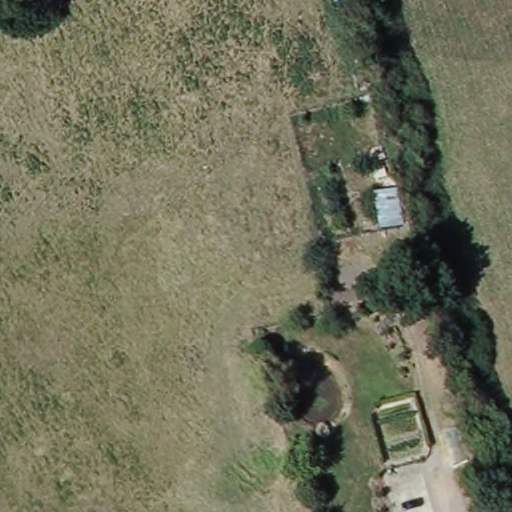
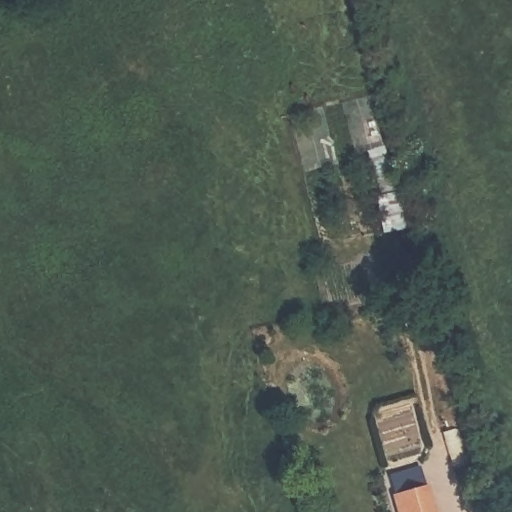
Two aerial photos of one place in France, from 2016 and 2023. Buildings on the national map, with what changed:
new [(425,480),(434,512),(396,512),(391,493),(425,480)]

